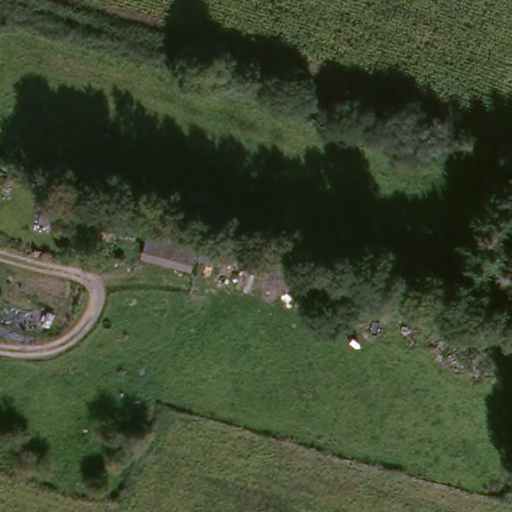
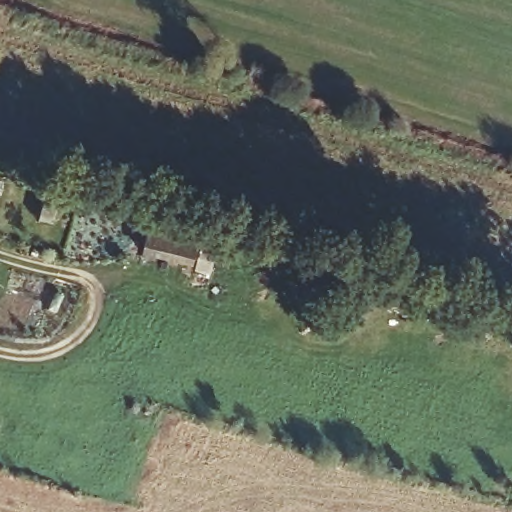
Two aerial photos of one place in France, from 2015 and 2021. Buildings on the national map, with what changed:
unchanged [(145,222),(198,235),(189,275),(136,262),(145,222)]

